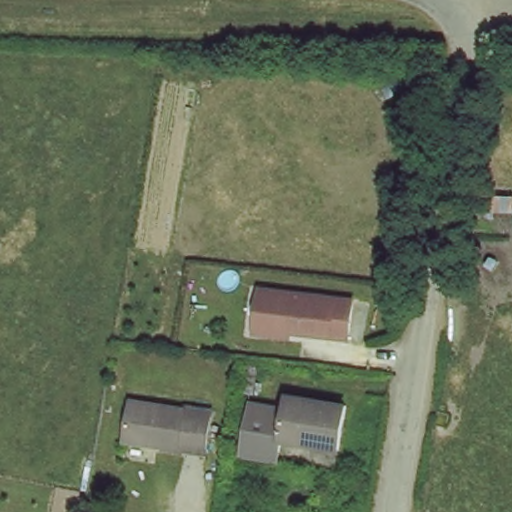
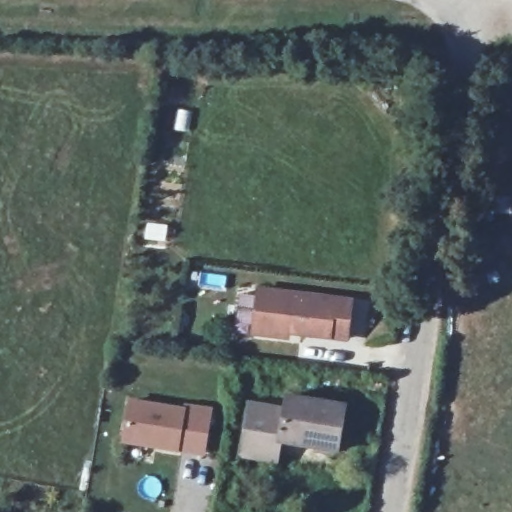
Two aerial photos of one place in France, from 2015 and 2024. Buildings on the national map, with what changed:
unchanged [(512,198),(512,218),(465,214),(468,194),(512,198)]
unchanged [(256,286),(349,298),(345,335),(276,328),(276,333),(251,330),(256,286)]
unchanged [(277,438),(286,438),(284,461),(241,457),(248,396),(281,400),(277,438)]
unchanged [(128,398),(206,411),(201,451),(123,444),(128,398)]
unchanged [(281,400),(341,406),(337,451),(305,448),(305,440),(286,438),(277,438),(281,400)]

